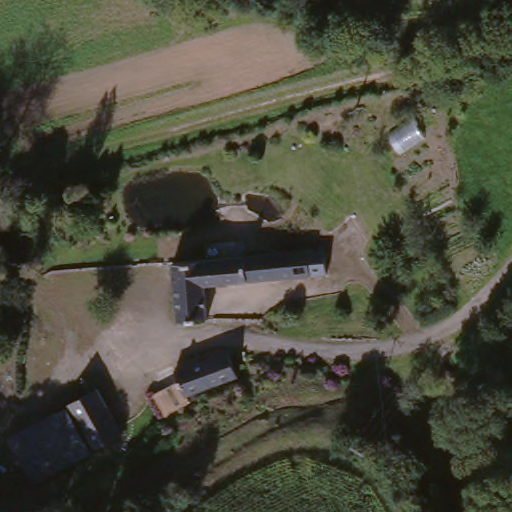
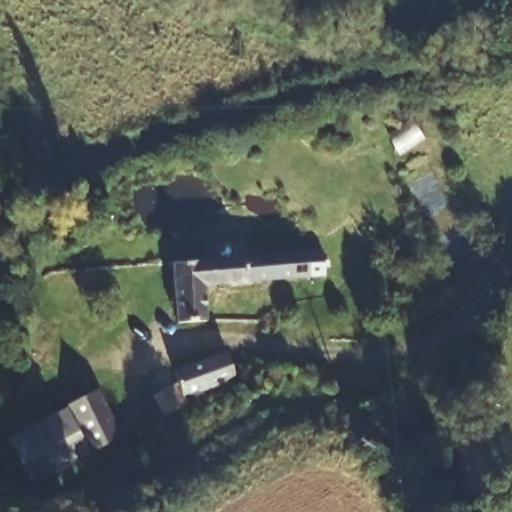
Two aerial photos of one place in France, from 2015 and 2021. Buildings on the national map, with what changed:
unchanged [(212,256),(328,248),(330,266),(320,267),(320,279),(204,288),(205,316),(199,316),(197,332),(178,334),(170,259),(212,256)]
unchanged [(159,394),(180,385),(177,371),(219,355),(233,386),(167,415),(159,394)]
unchanged [(74,407),(99,396),(119,439),(96,450),(76,410),(74,407)]
unchanged [(96,450),(35,479),(14,437),(76,410),(96,450)]

